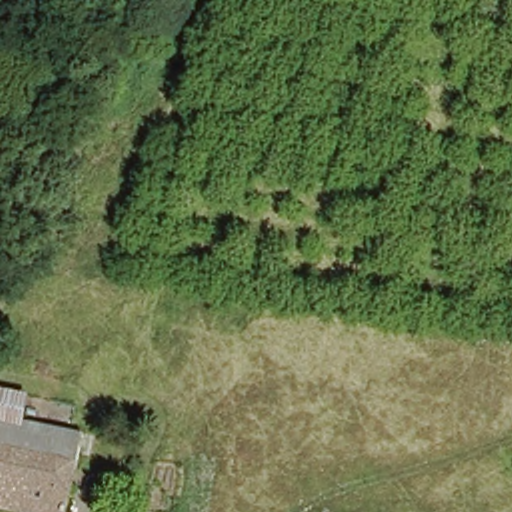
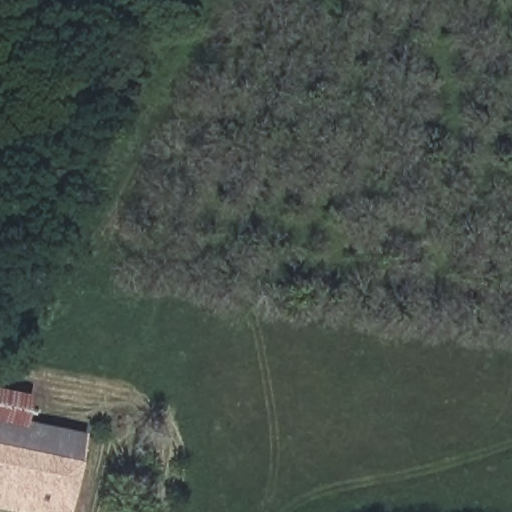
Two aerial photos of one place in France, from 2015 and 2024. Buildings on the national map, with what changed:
unchanged [(29,512),(0,506),(0,414),(81,432),(65,512),(29,512)]

